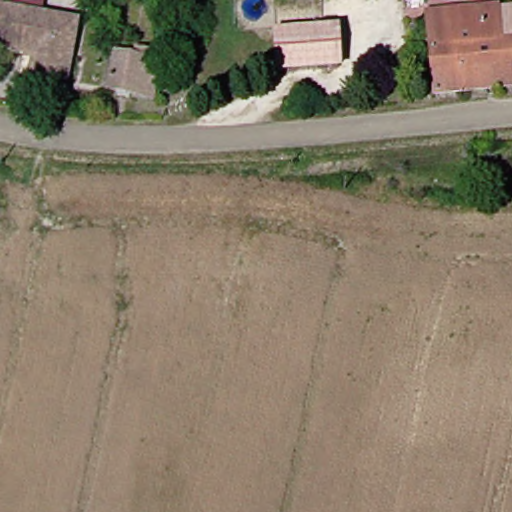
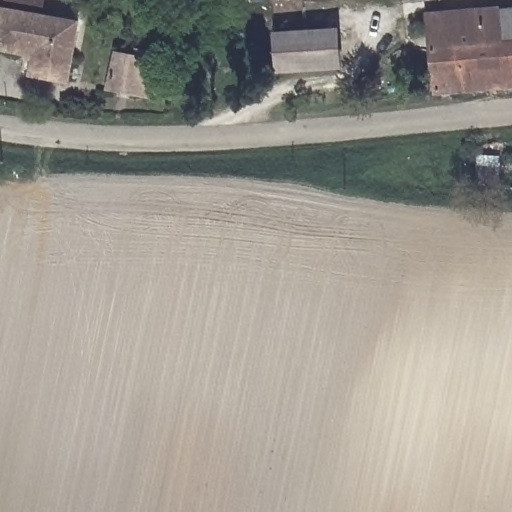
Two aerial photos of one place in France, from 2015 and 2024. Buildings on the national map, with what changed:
unchanged [(39,78),(27,76),(32,56),(0,47),(0,41),(9,8),(14,10),(16,0),(48,0),(55,2),(50,20),(87,30),(73,76),(70,86),(39,78)]
unchanged [(436,8),(512,3),(512,81),(463,87),(441,90),(436,8)]
unchanged [(286,70),(285,31),(346,29),(348,68),(286,70)]
unchanged [(159,96),(146,91),(115,79),(126,48),(159,59),(170,63),(159,96)]

